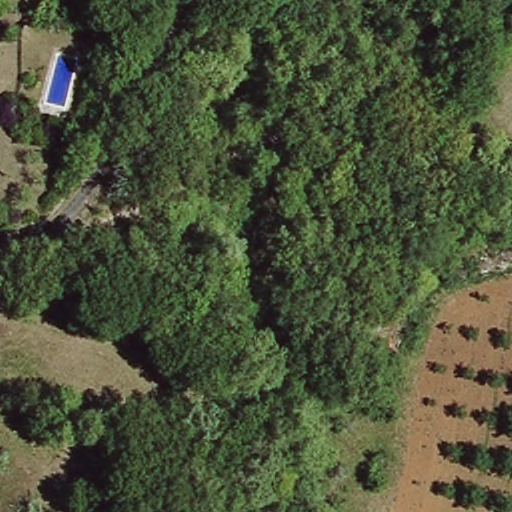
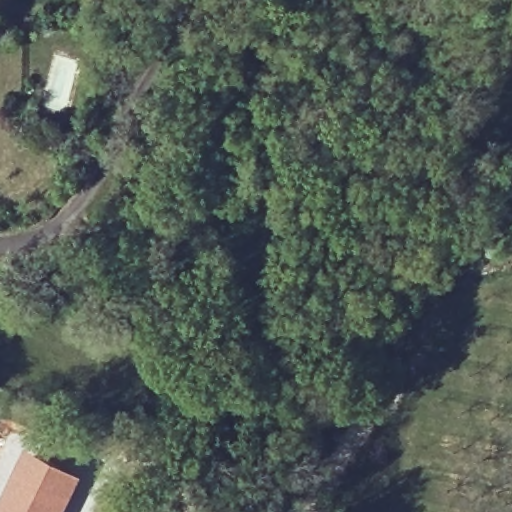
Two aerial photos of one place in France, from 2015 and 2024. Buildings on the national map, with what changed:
unchanged [(398,355),(377,348),(383,332),(404,340),(398,355)]
new [(25,445),(84,475),(66,512),(0,512),(0,498),(25,445)]

